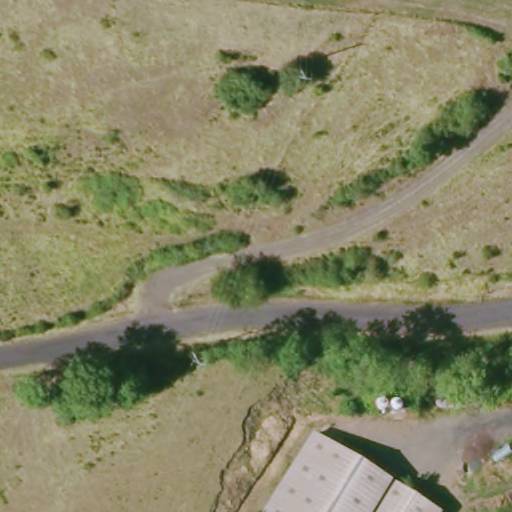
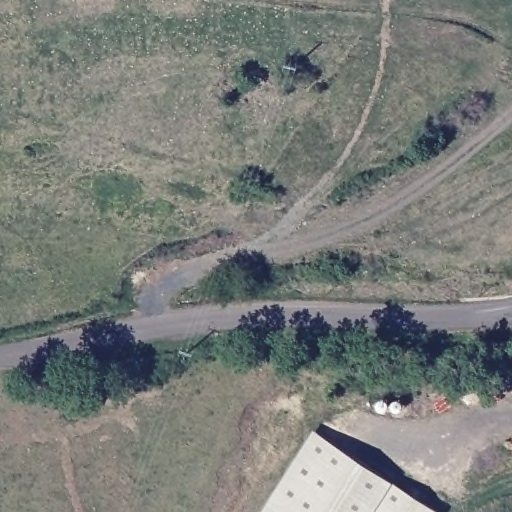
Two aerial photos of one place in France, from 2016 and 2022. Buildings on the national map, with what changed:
unchanged [(321,437),(440,512),(275,512),(321,437)]

